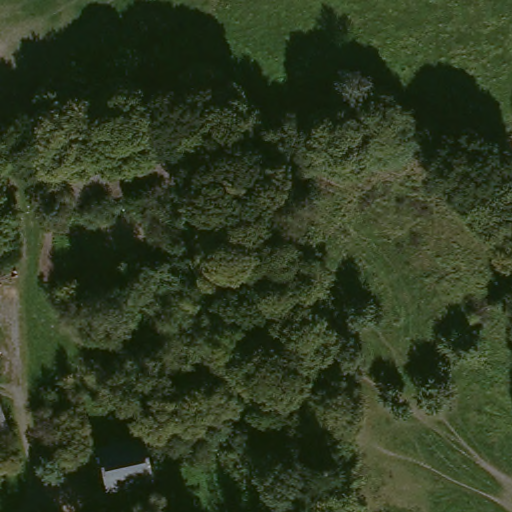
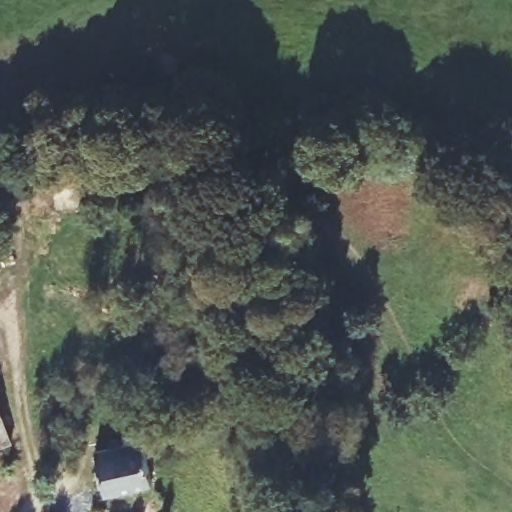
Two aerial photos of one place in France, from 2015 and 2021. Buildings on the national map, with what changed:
unchanged [(174,135),(184,183),(40,211),(31,166),(174,135)]
unchanged [(9,439),(0,441),(0,409),(9,439)]
unchanged [(115,448),(114,444),(126,441),(127,446),(149,441),(158,477),(139,482),(141,489),(123,494),(120,482),(103,486),(100,475),(107,473),(101,451),(115,448)]

